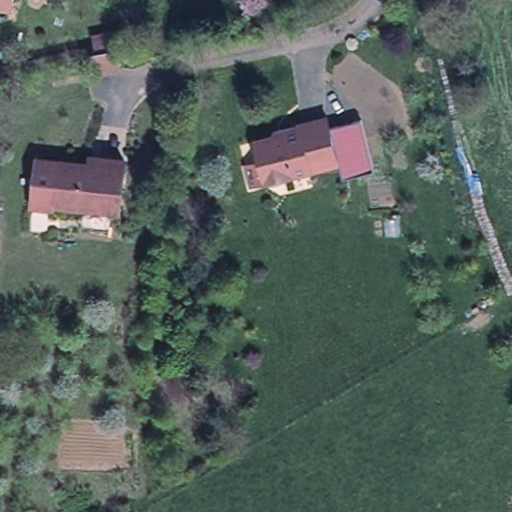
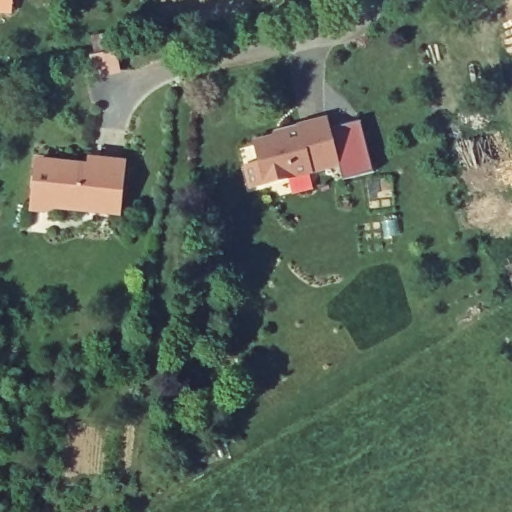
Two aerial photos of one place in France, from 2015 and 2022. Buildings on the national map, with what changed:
unchanged [(0,6),(0,0),(12,0),(11,7),(11,11),(0,10),(0,6)]
unchanged [(120,74),(93,80),(87,55),(95,52),(89,36),(109,29),(120,74)]
unchanged [(334,165),(245,187),(240,165),(255,162),(250,141),(295,130),(295,125),(322,118),(334,165)]
unchanged [(58,162),(59,162),(89,165),(90,160),(123,162),(118,212),(55,207),(47,211),(32,209),(37,161),(58,162)]

